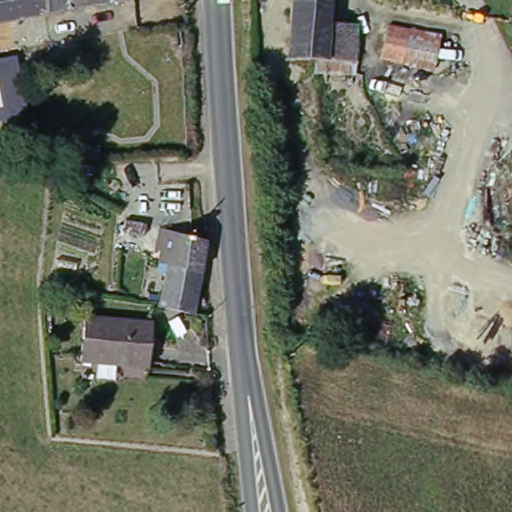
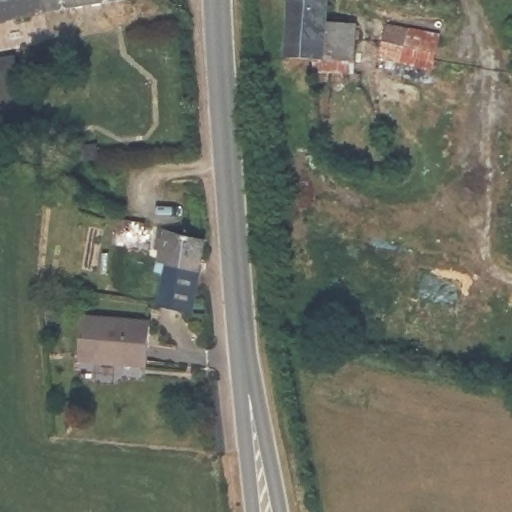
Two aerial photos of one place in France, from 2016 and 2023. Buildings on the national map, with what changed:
unchanged [(127,14),(0,25),(0,0),(126,0),(127,14)]
unchanged [(337,61),(288,59),(291,0),(330,0),(328,23),(357,26),(355,61),(354,72),(336,71),(337,61)]
unchanged [(383,58),(387,22),(442,32),(436,67),(383,58)]
unchanged [(211,278),(172,270),(175,258),(163,255),(166,227),(181,238),(207,245),(216,247),(211,278)]
unchanged [(172,270),(211,278),(202,316),(164,308),(162,301),(172,270)]
unchanged [(158,373),(86,373),(79,325),(152,327),(158,373)]

